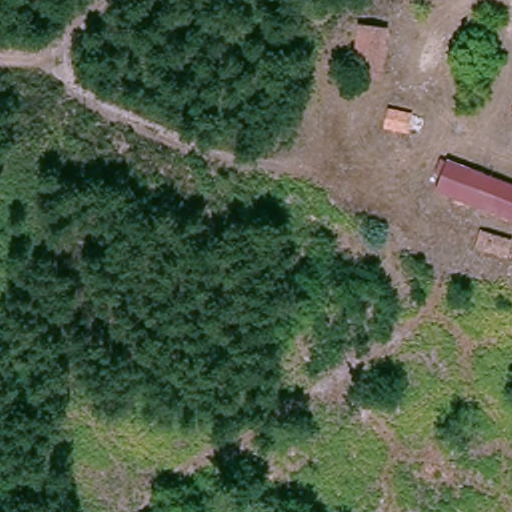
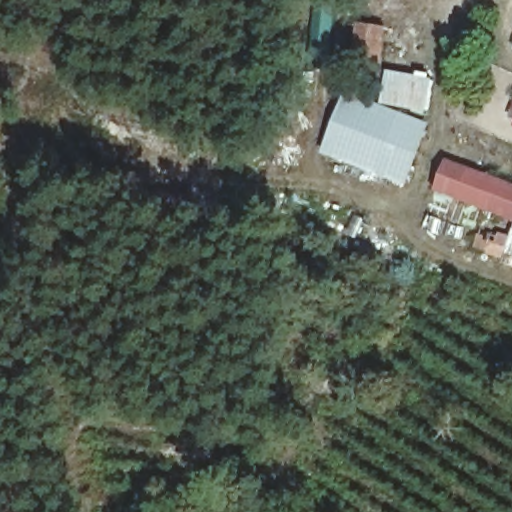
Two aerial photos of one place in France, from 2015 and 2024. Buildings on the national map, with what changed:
unchanged [(383,77),(357,74),(361,27),(386,29),(383,77)]
new [(427,112),(383,105),(388,71),(433,79),(427,112)]
new [(320,155),(345,94),(429,125),(405,187),(320,155)]
demolished [(407,132),(385,124),(391,107),(413,113),(407,132)]
unchanged [(455,194),(437,189),(446,159),(464,165),(512,182),(512,215),(455,194)]
unchanged [(512,242),(512,244),(508,257),(480,247),(485,231),(512,242)]

